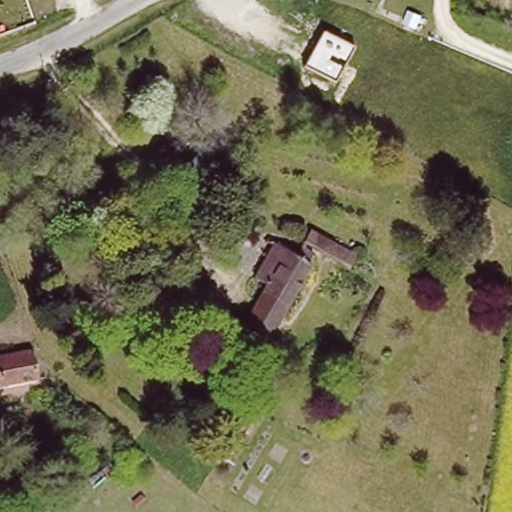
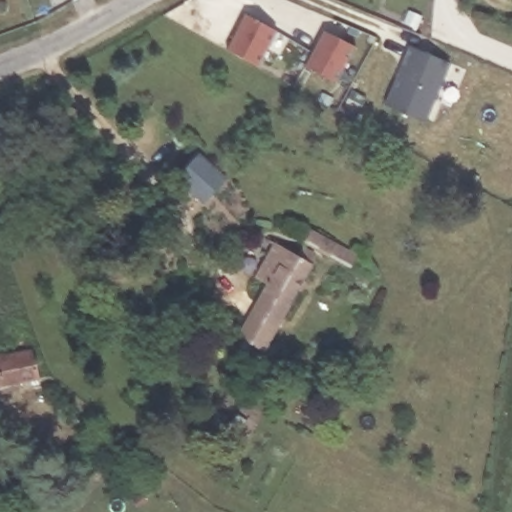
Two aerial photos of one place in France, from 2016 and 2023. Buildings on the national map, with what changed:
new [(245,15),(279,31),(260,69),(227,51),(245,15)]
unchanged [(335,82),(304,66),(324,31),(354,47),(335,82)]
new [(408,46),(450,64),(426,123),(384,106),(408,46)]
unchanged [(351,260),(328,247),(326,252),(304,239),(310,229),(355,254),(351,260)]
unchanged [(316,263),(262,352),(237,337),(268,287),(253,278),(277,240),(297,252),(302,243),(315,251),(310,259),(316,263)]
unchanged [(34,353),(39,383),(0,390),(0,358),(34,353)]

